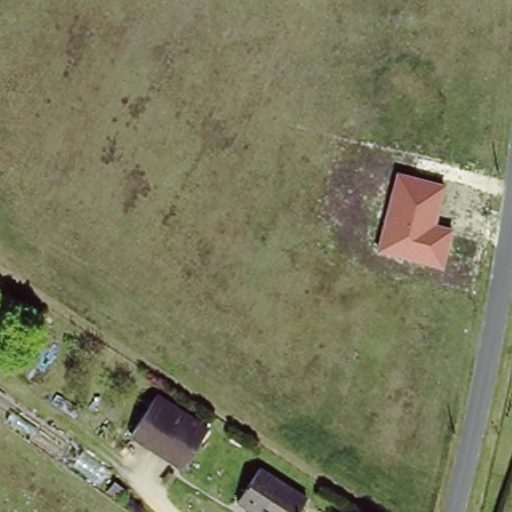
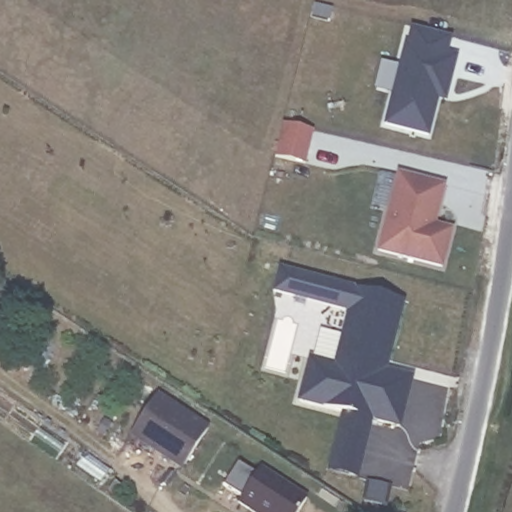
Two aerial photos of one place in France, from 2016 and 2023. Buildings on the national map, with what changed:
new [(314,3),(331,8),(327,20),(311,16),(314,3)]
new [(449,55),(460,57),(448,105),(439,102),(429,137),(384,126),(405,44),(409,45),(412,28),(454,36),(449,55)]
new [(276,160),(285,124),(316,130),(306,165),(276,160)]
unchanged [(375,253),(396,172),(444,185),(436,222),(454,227),(443,270),(375,253)]
new [(388,370),(414,375),(402,428),(371,422),(359,480),(329,473),(344,412),(325,407),(324,408),(299,401),(311,357),(334,363),(349,313),(274,292),(280,268),(407,302),(388,370)]
unchanged [(209,433),(188,466),(142,436),(164,403),(209,433)]
unchanged [(238,505),(259,470),(309,501),(302,512),(249,512),(238,505)]

